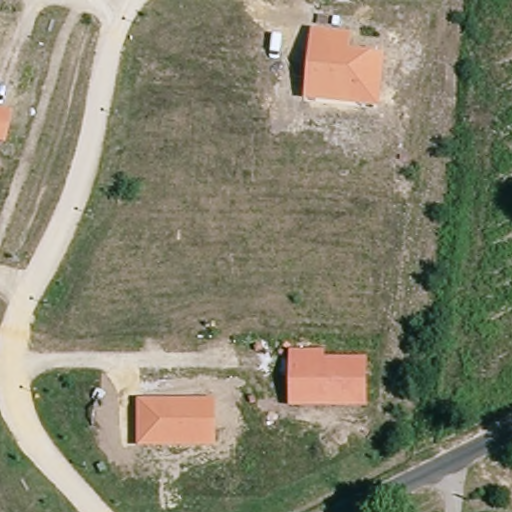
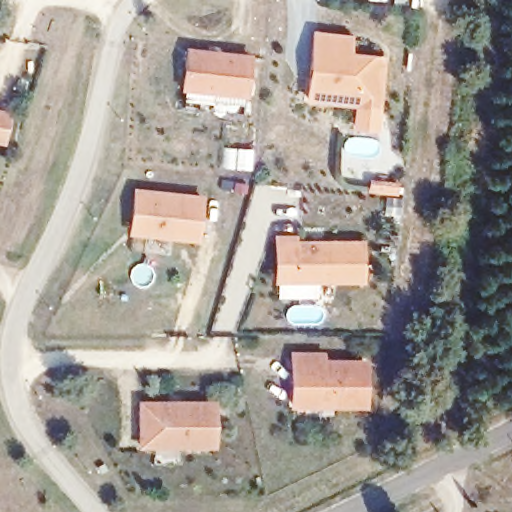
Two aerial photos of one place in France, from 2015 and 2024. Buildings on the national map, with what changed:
unchanged [(352,50),(385,54),(380,106),(303,99),(311,29),(352,33),(352,50)]
new [(180,88),(184,45),(251,52),(247,94),(180,88)]
unchanged [(10,111),(5,144),(0,143),(0,109),(10,111)]
new [(202,192),(197,238),(129,231),(134,184),(202,192)]
new [(296,231),(296,236),(362,236),(362,280),(273,282),(272,231),(296,231)]
unchanged [(367,407),(288,407),(289,351),(325,350),(325,356),(367,357),(367,407)]
unchanged [(215,447),(137,446),(137,398),(215,398),(215,447)]

